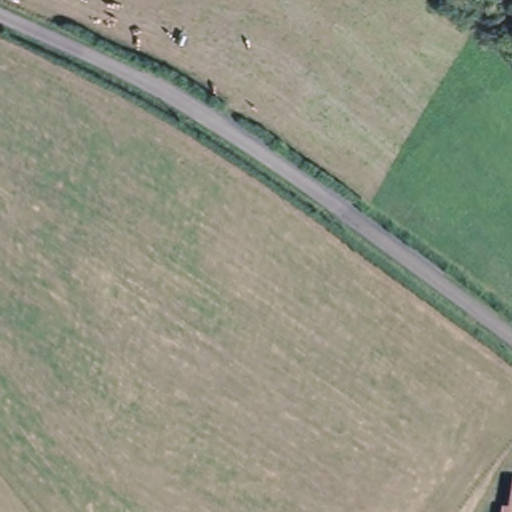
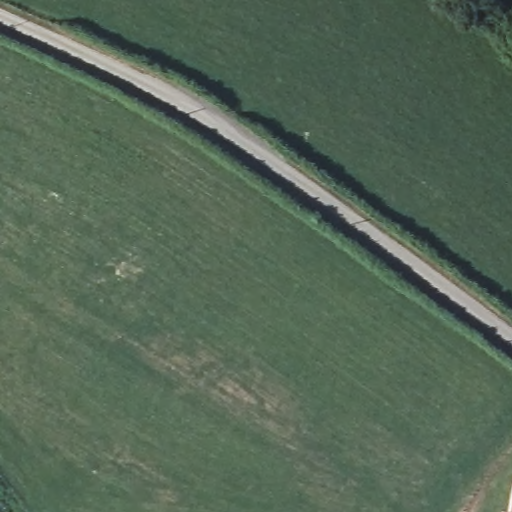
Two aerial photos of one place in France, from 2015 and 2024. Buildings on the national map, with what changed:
unchanged [(512,512),(511,512),(511,511),(512,512)]

